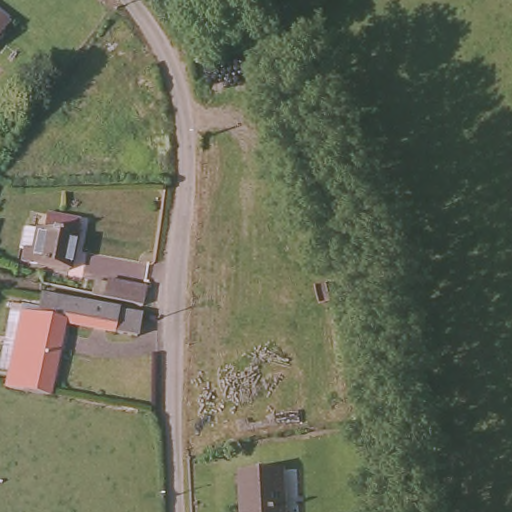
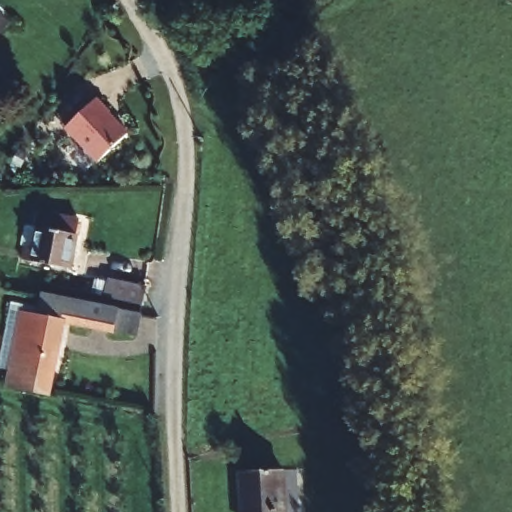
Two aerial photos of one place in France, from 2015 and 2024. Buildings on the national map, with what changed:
unchanged [(0,24),(0,18),(3,20),(0,24)]
new [(97,97),(111,111),(110,113),(129,133),(99,161),(66,126),(97,97)]
unchanged [(44,229),(45,213),(80,219),(70,269),(22,260),(28,227),(44,229)]
unchanged [(143,310),(105,302),(108,284),(145,292),(143,310)]
unchanged [(138,340),(63,327),(49,398),(12,391),(29,313),(40,315),(44,298),(142,317),(138,340)]
unchanged [(230,472),(283,469),(287,512),(232,512),(230,472)]

